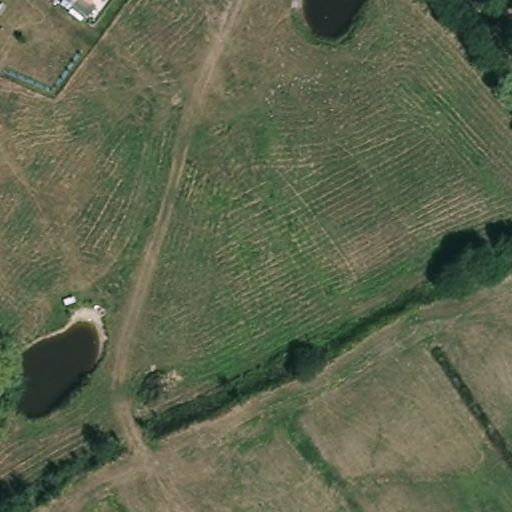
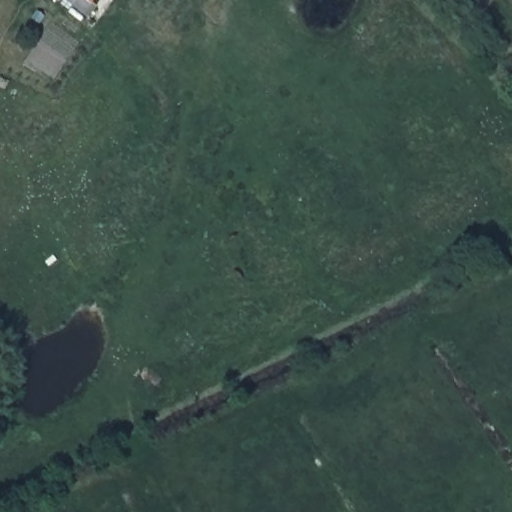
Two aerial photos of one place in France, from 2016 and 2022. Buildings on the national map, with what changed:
unchanged [(102,12),(93,24),(60,0),(98,0),(94,5),(102,12)]

